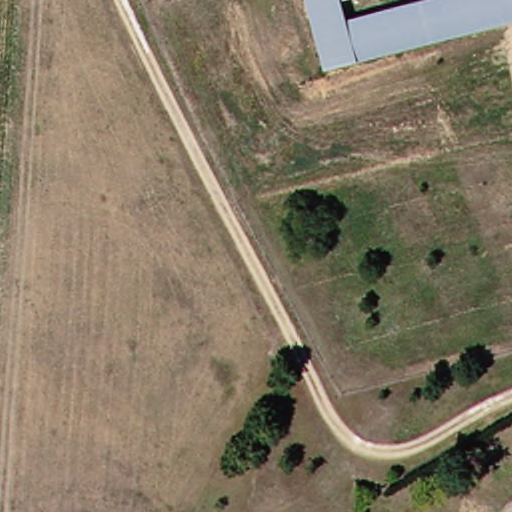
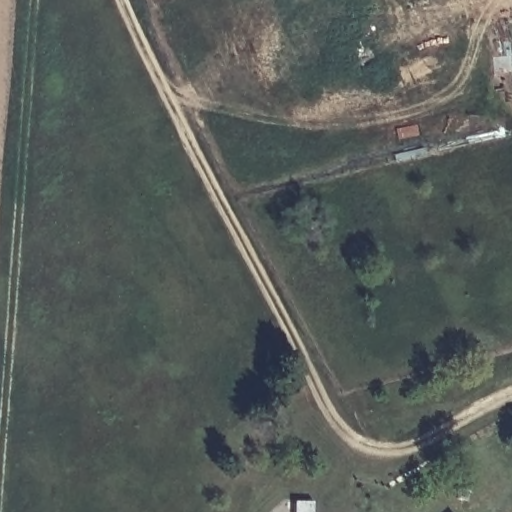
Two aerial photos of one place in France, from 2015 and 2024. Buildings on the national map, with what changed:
demolished [(333,0),(337,15),(396,0),(512,0),(512,14),(348,57),(318,65),(299,0),(333,0)]

